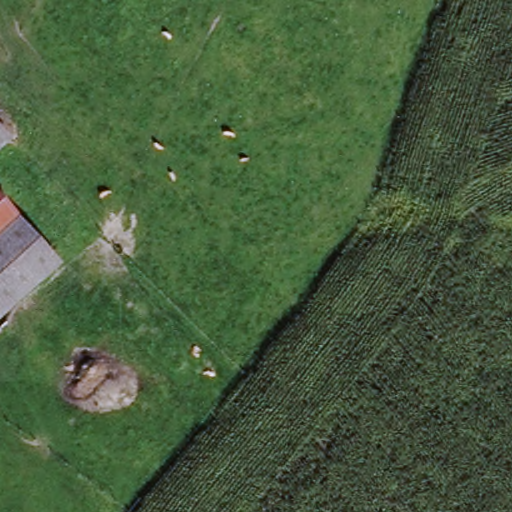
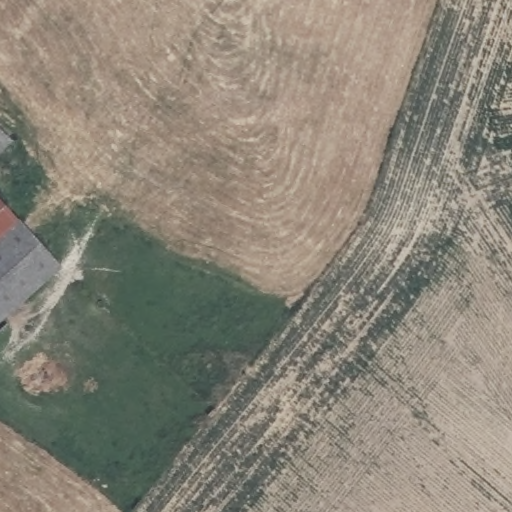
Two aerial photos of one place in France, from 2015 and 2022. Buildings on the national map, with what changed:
unchanged [(0,143),(0,132),(5,138),(0,143)]
unchanged [(0,275),(0,212),(10,223),(31,248),(0,275)]
unchanged [(58,273),(0,323),(0,277),(33,250),(58,273)]

